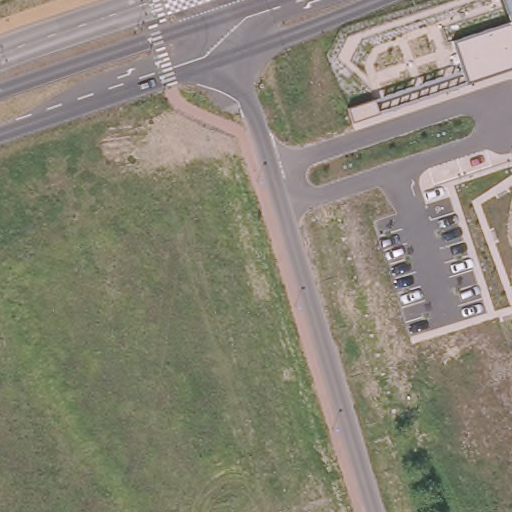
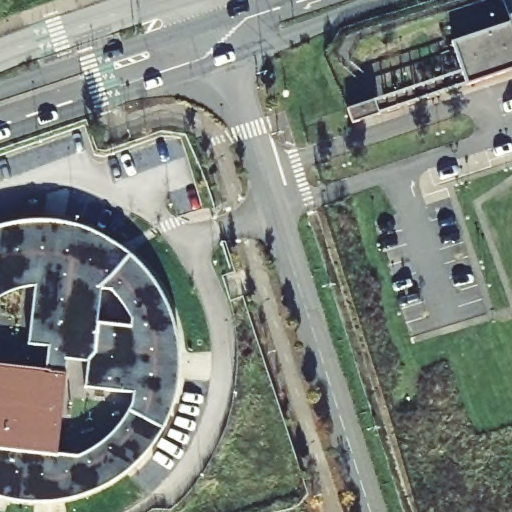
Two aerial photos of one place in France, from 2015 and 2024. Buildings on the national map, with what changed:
unchanged [(455,40),(512,19),(512,67),(468,82),(455,40)]
new [(51,370),(53,347),(28,344),(35,287),(26,287),(13,291),(1,297),(0,297),(0,227),(14,223),(38,221),(44,221),(63,222),(86,229),(109,240),(130,255),(146,271),(160,291),(171,313),(177,338),(180,362),(178,376),(177,386),(171,410),(160,432),(146,452),(129,469),(109,483),(86,493),(63,500),(38,502),(14,500),(0,496),(0,364),(51,370)]

